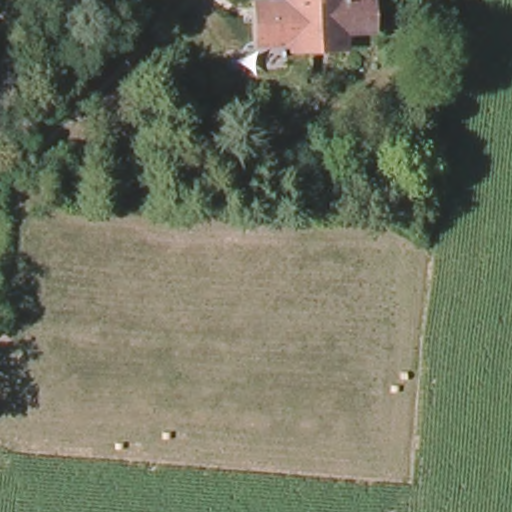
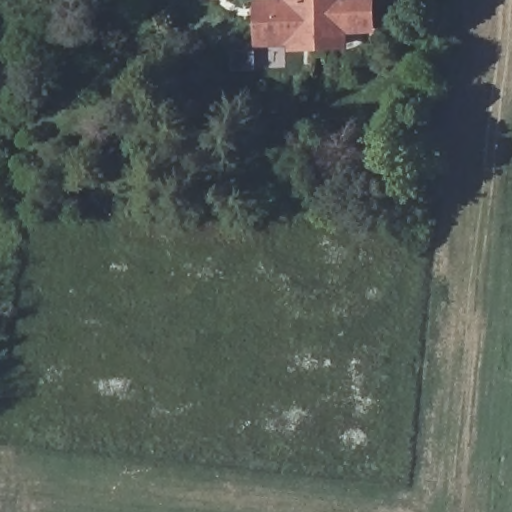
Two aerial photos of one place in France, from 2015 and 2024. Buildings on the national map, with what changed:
unchanged [(360,35),(337,36),(337,53),(280,54),(278,49),(250,49),(249,6),(280,6),(280,0),(360,0),(360,35)]

